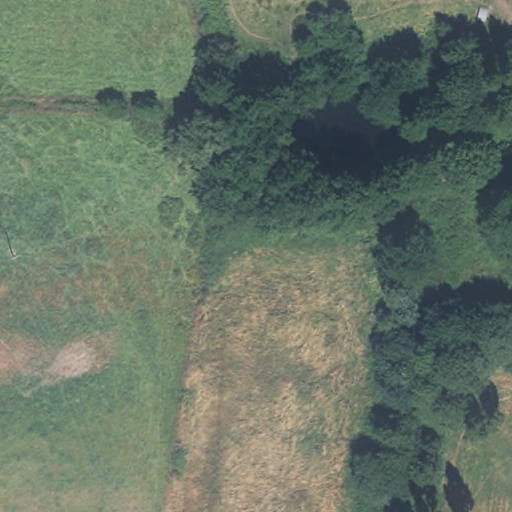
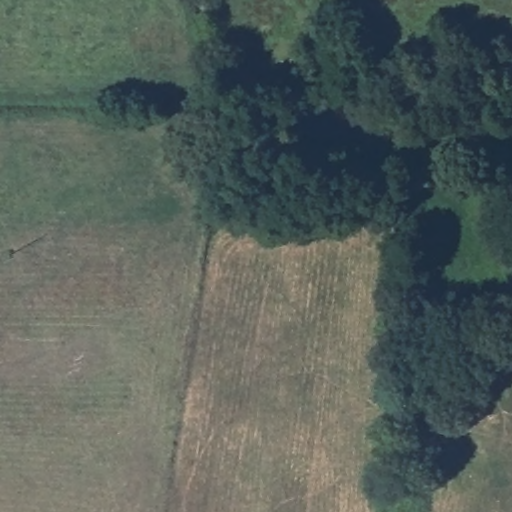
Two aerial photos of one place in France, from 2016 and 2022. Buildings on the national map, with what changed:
unchanged [(453,162),(461,185),(432,193),(422,170),(453,162)]

